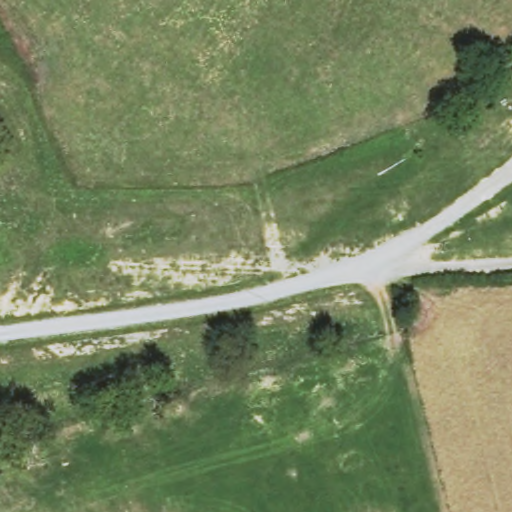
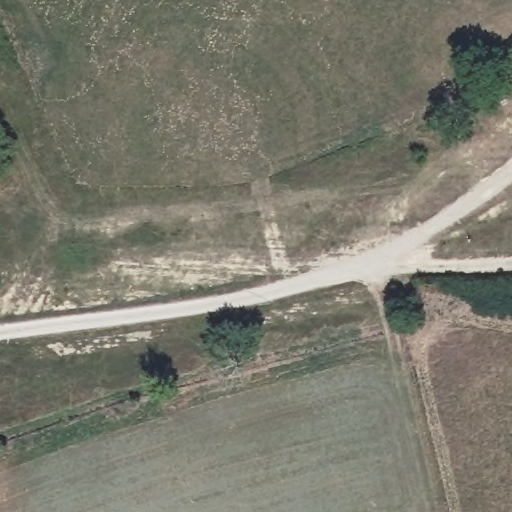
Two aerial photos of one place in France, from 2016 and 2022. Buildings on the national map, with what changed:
unchanged [(420,295),(426,325),(401,330),(396,300),(420,295)]

